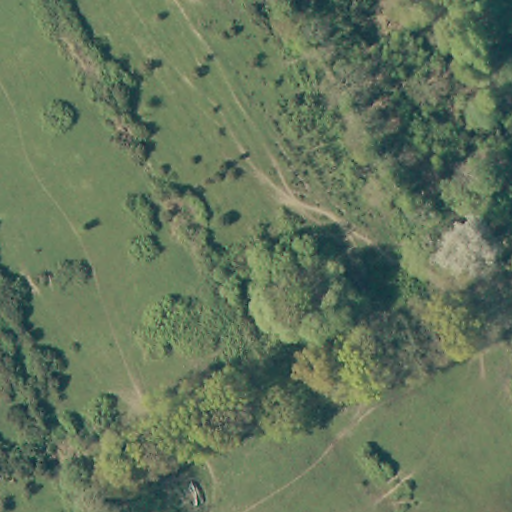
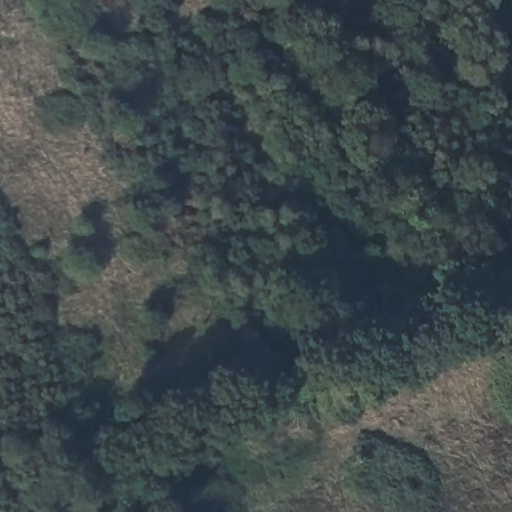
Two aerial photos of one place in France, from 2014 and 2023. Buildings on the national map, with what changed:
unchanged [(140,459),(164,448),(176,479),(153,491),(140,459)]

